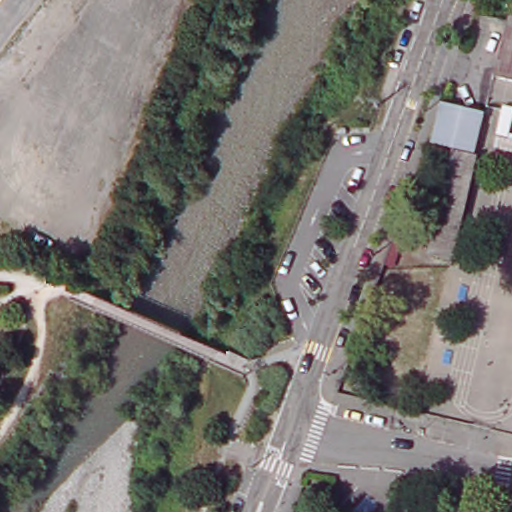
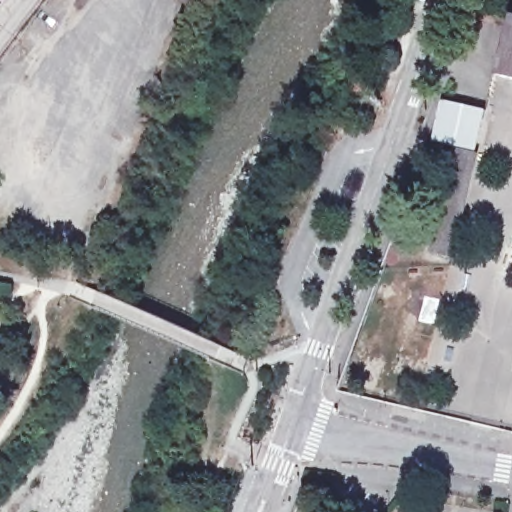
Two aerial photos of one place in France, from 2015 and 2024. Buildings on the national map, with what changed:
unchanged [(502,69),(512,23),(512,74),(501,71),(502,69)]
unchanged [(484,111),(476,150),(434,140),(441,110),(443,101),(444,101),(484,111)]
unchanged [(454,258),(432,254),(457,151),(478,155),(454,258)]
unchanged [(403,216),(413,219),(396,266),(386,263),(403,216)]

